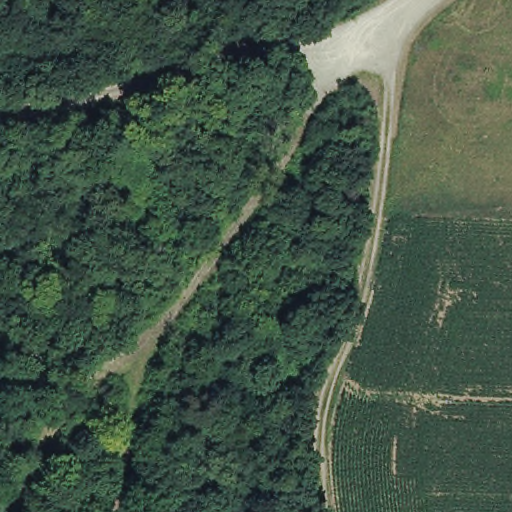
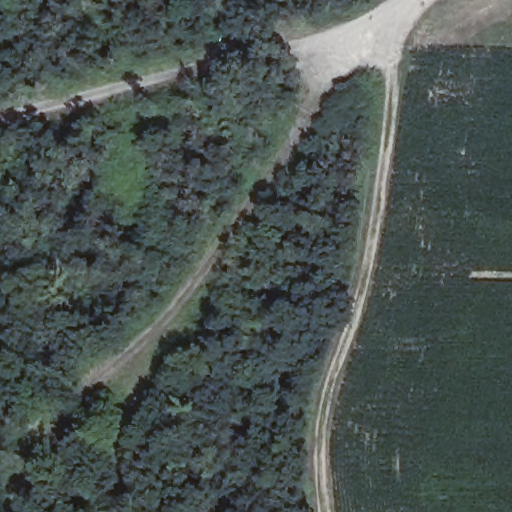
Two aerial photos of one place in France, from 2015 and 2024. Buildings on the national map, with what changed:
unchanged [(118,311),(125,321),(115,327),(109,317),(118,311)]

